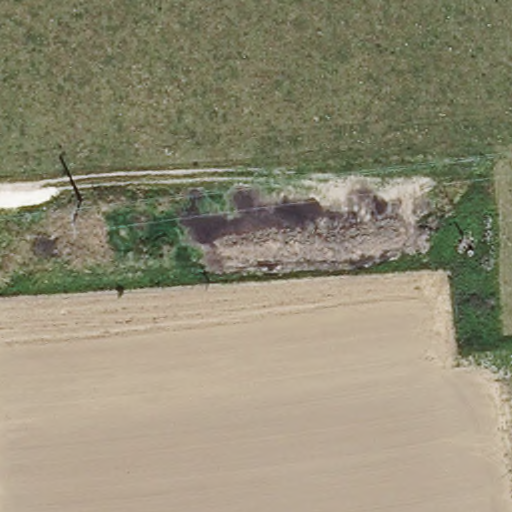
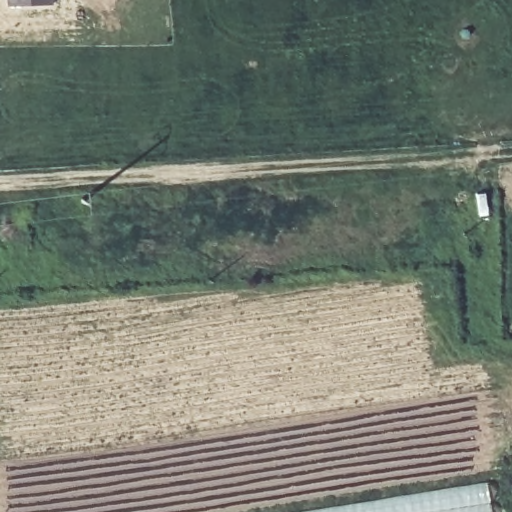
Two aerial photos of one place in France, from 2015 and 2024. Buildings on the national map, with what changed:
new [(6,5),(6,0),(52,0),(53,4),(6,5)]
new [(489,482),(493,512),(304,512),(489,482)]

